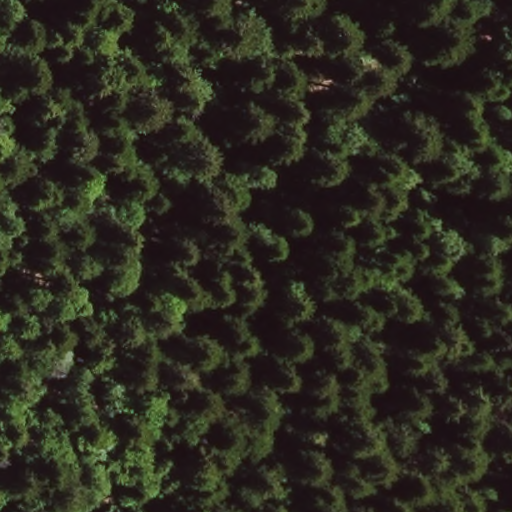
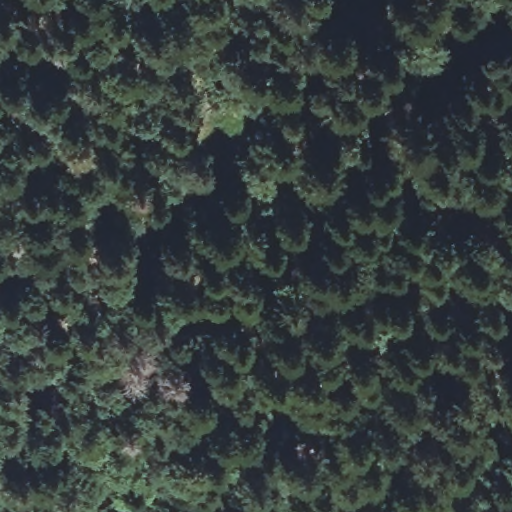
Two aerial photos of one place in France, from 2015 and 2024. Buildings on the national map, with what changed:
[]

